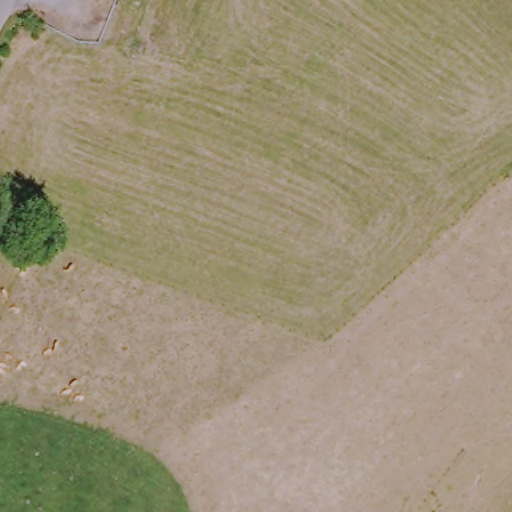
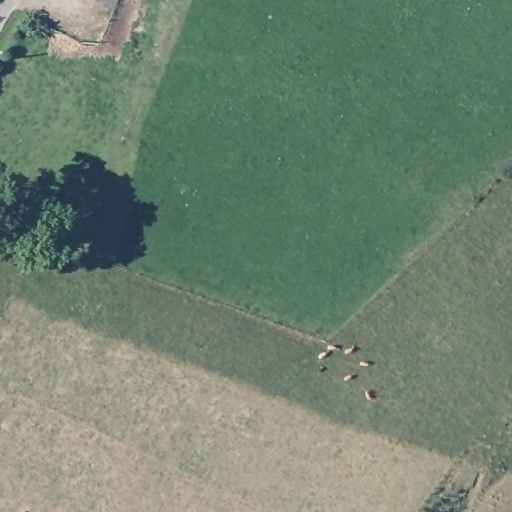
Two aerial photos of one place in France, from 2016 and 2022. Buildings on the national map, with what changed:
unchanged [(108,0),(117,0),(115,3),(108,0)]

